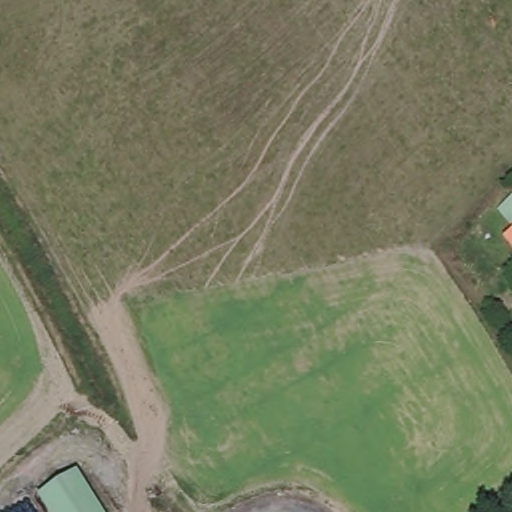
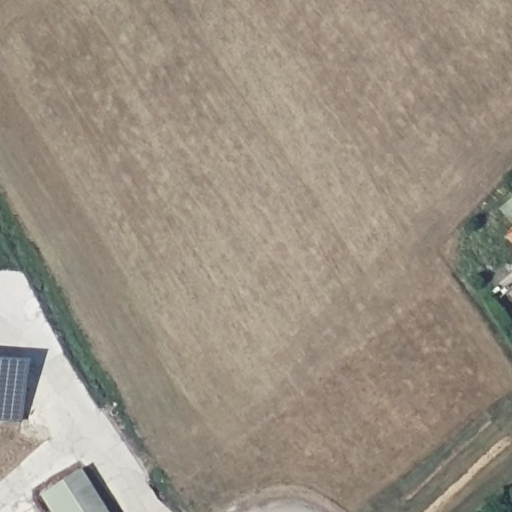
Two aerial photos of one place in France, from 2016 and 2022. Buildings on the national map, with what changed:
unchanged [(512,246),(504,238),(512,231),(512,246)]
new [(24,367),(20,427),(0,426),(0,366),(24,367)]
unchanged [(110,512),(52,512),(38,491),(82,468),(110,512)]

